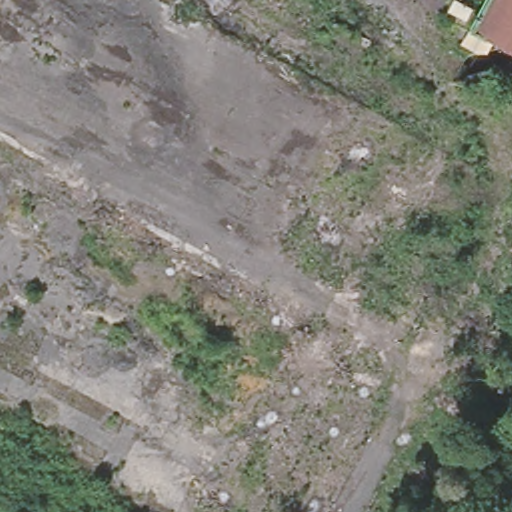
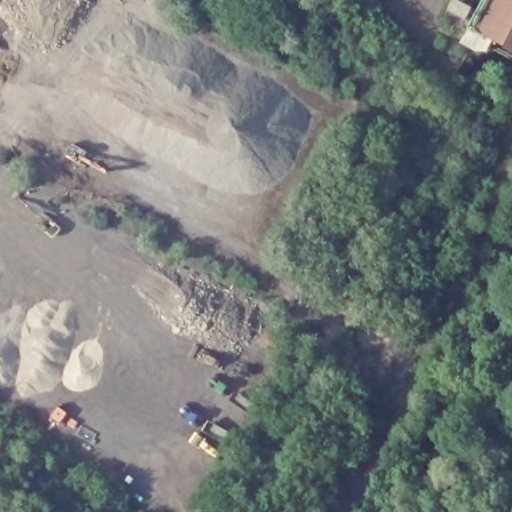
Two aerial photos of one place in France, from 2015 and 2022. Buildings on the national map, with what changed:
unchanged [(498,42),(488,52),(457,40),(478,0),(512,0),(512,48),(498,42)]

